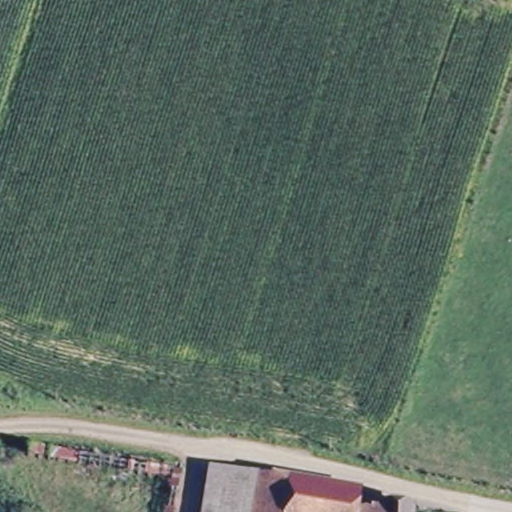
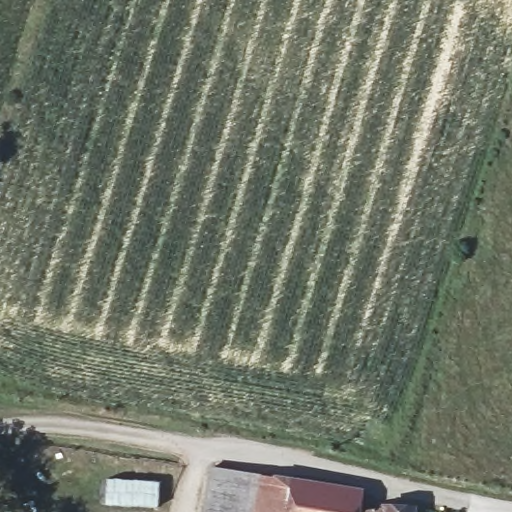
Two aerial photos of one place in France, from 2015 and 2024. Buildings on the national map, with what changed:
unchanged [(358,491),(358,512),(203,512),(208,467),(358,491)]
unchanged [(382,512),(381,506),(411,507),(411,512),(374,512),(382,512)]

